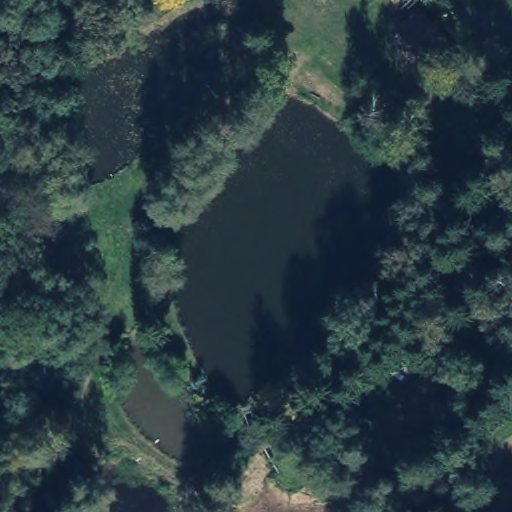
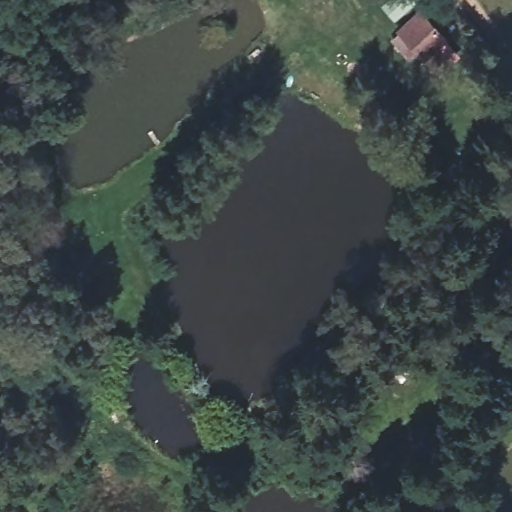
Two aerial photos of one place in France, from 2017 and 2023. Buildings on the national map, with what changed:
unchanged [(447,37),(420,53),(400,22),(425,5),(447,37)]

